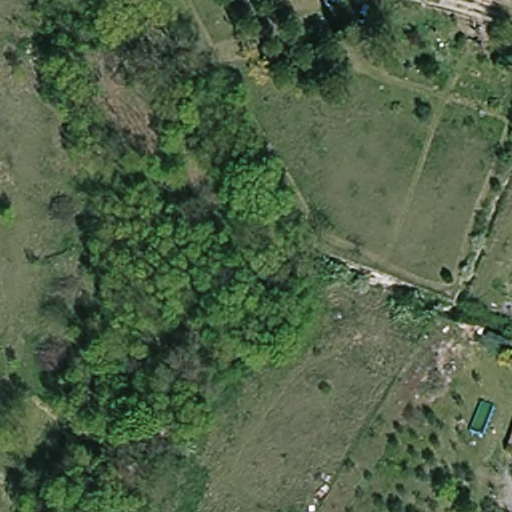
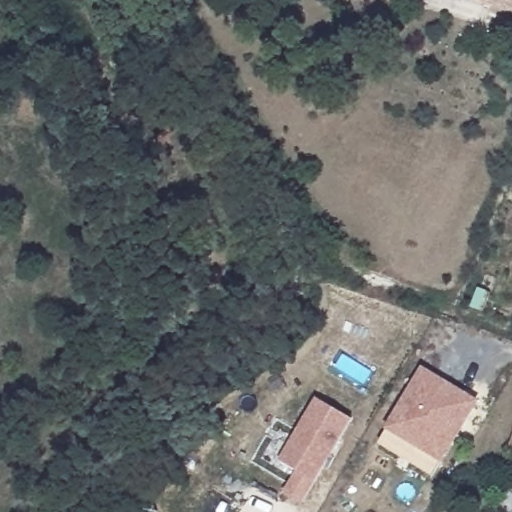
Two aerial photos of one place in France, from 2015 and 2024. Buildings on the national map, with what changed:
unchanged [(495,3),(484,0),(512,0),(512,8),(495,3)]
new [(440,460),(385,427),(421,368),(475,401),(458,428),(454,436),(440,460)]
new [(315,398),(350,418),(299,503),(282,494),(295,471),(278,461),(315,398)]
unchanged [(509,446),(512,437),(512,447),(509,446)]

